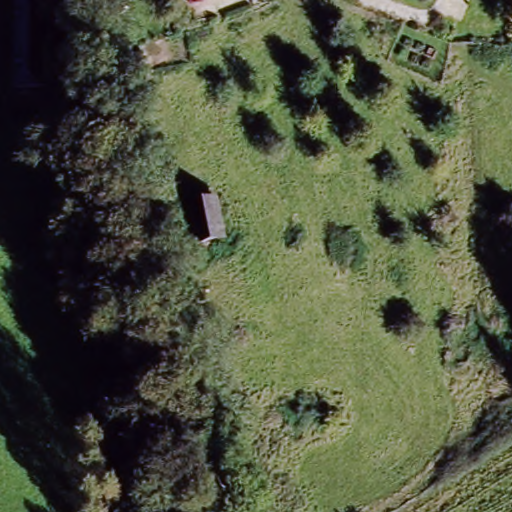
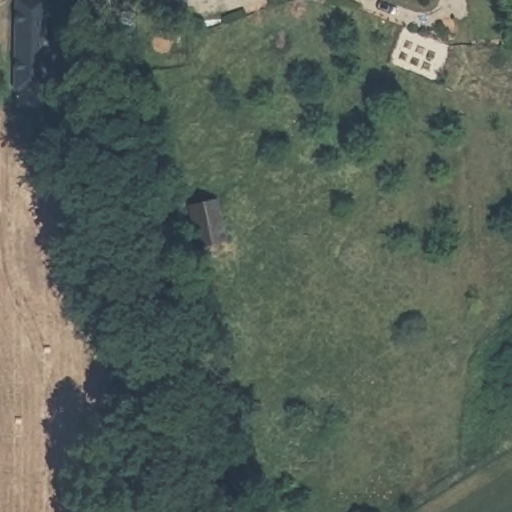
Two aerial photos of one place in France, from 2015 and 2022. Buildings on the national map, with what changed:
unchanged [(9,0),(41,0),(41,85),(8,86),(9,0)]
unchanged [(188,205),(218,198),(227,241),(198,247),(188,205)]

